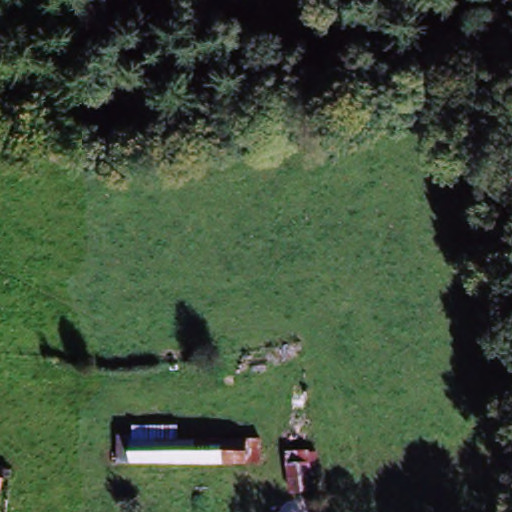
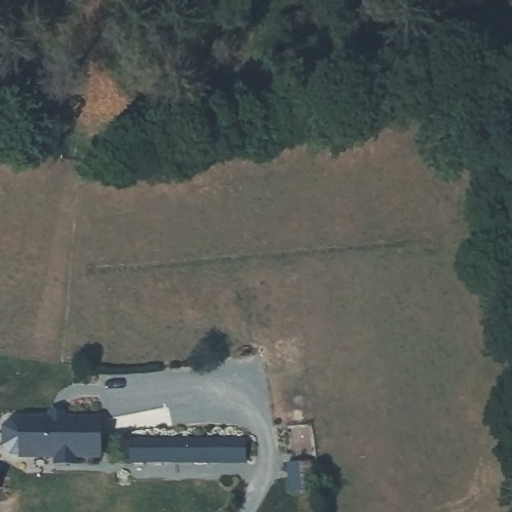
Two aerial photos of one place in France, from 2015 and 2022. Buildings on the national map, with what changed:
new [(17,419),(17,416),(94,416),(94,455),(71,455),(71,461),(50,461),(50,455),(17,455),(17,452),(5,452),(0,447),(0,424),(5,419),(17,419)]
unchanged [(260,461),(240,460),(147,460),(132,460),(134,437),(147,437),(241,437),(260,437),(260,461)]
unchanged [(290,493),(288,479),(285,442),(305,440),(309,478),(310,492),(290,493)]

